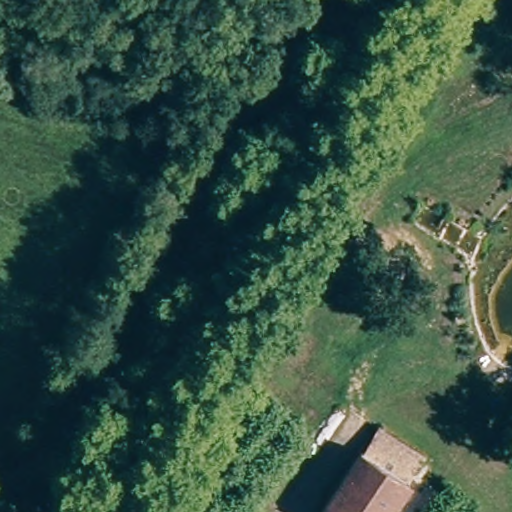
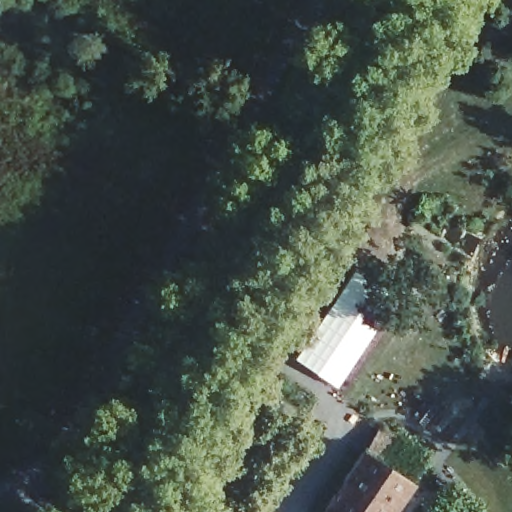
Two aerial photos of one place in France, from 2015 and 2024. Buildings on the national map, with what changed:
new [(351,274),(375,292),(357,318),(374,330),(337,388),(293,358),(351,274)]
unchanged [(361,446),(413,483),(391,512),(316,512),(361,446)]

